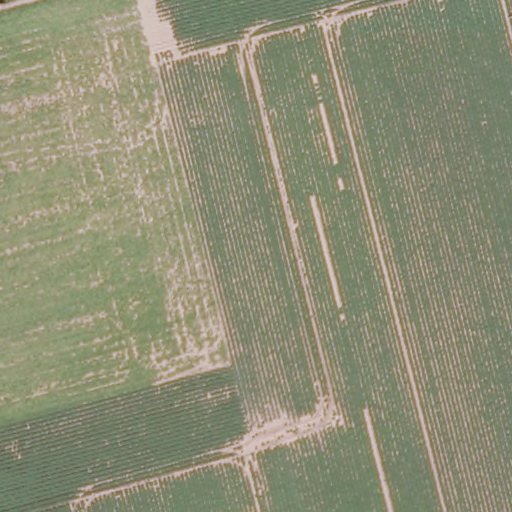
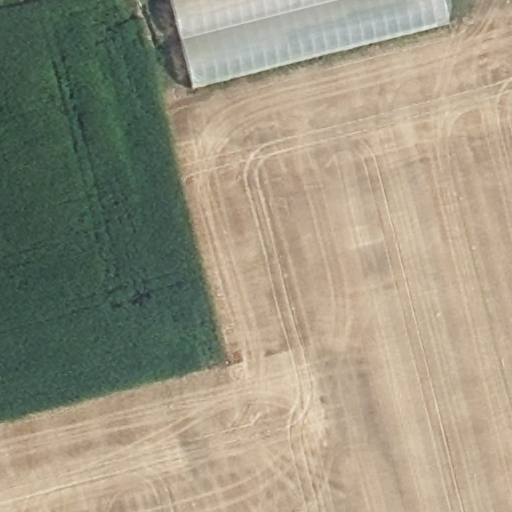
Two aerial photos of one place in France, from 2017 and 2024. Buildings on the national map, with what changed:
new [(440,0),(447,25),(191,88),(170,0),(440,0)]

